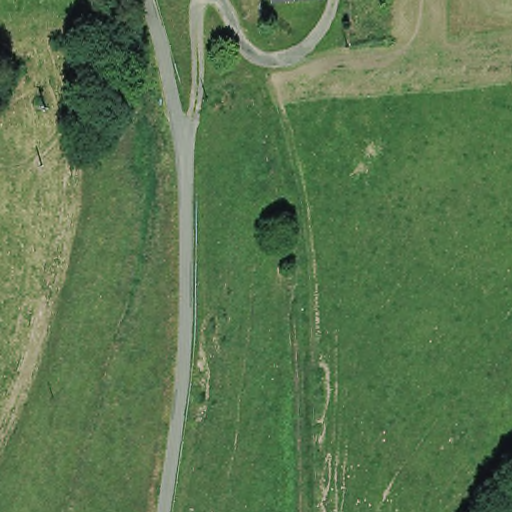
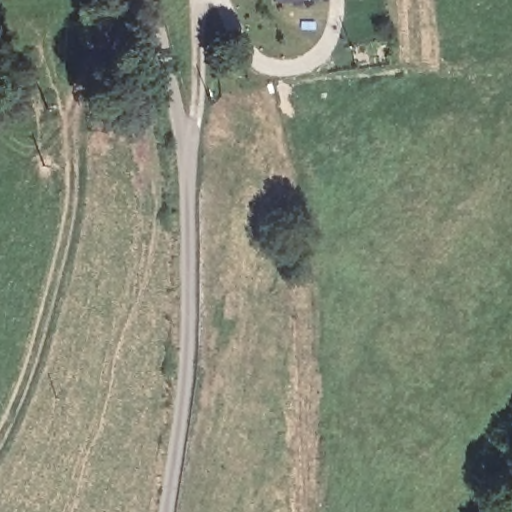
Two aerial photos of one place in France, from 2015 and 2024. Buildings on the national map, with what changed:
unchanged [(271,4),(271,0),(315,0),(271,4)]

